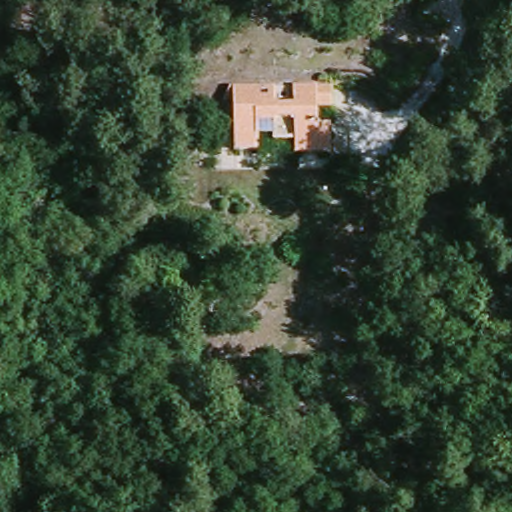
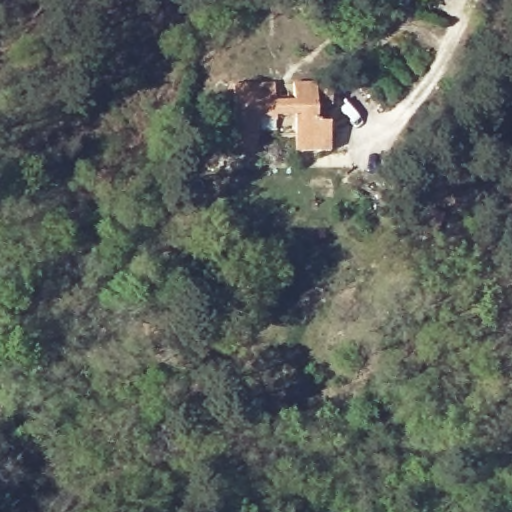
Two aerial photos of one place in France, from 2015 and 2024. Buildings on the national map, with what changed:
unchanged [(235,145),(234,100),(227,99),(235,90),(341,89),(341,105),(326,106),(326,129),(336,130),(336,156),(305,155),(305,143),(282,142),(281,135),(262,135),(261,145),(235,145)]

